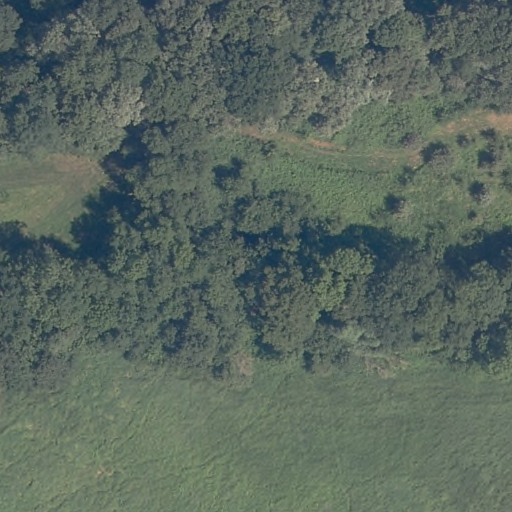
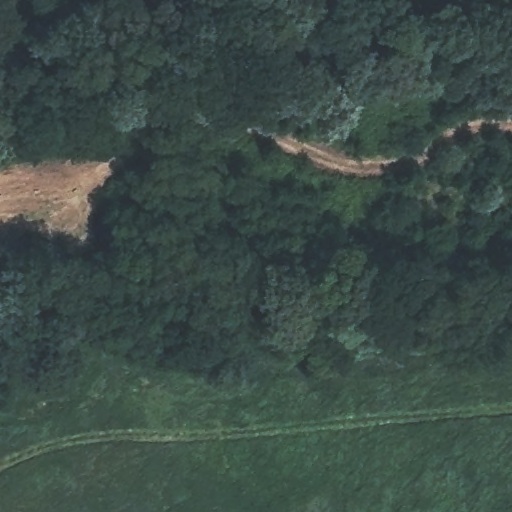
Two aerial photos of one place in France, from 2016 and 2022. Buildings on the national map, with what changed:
[]

